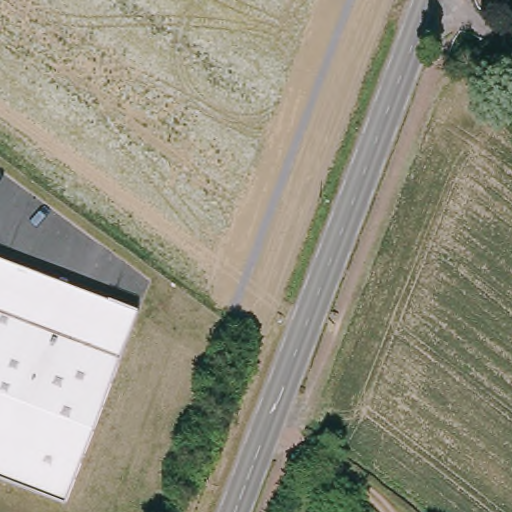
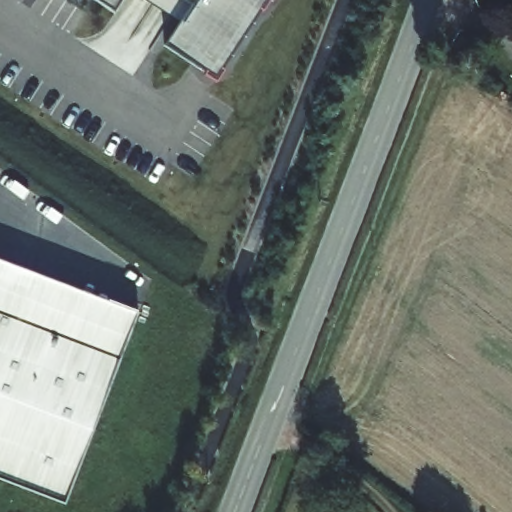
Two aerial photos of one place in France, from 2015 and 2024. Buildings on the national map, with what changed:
new [(112,17),(84,0),(124,0),(112,17)]
new [(215,88),(166,55),(196,16),(170,0),(273,0),(215,88)]
unchanged [(66,504),(0,479),(0,260),(139,313),(66,504)]

